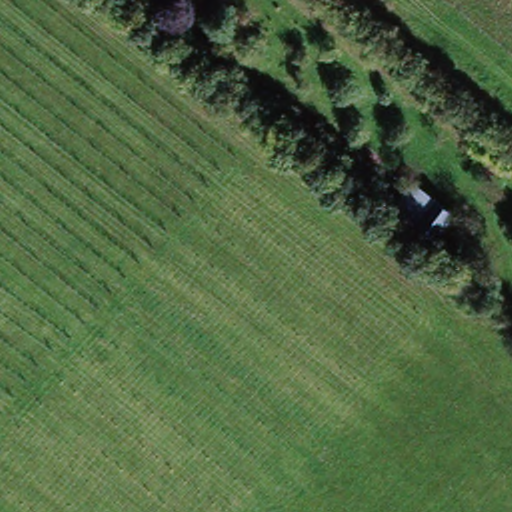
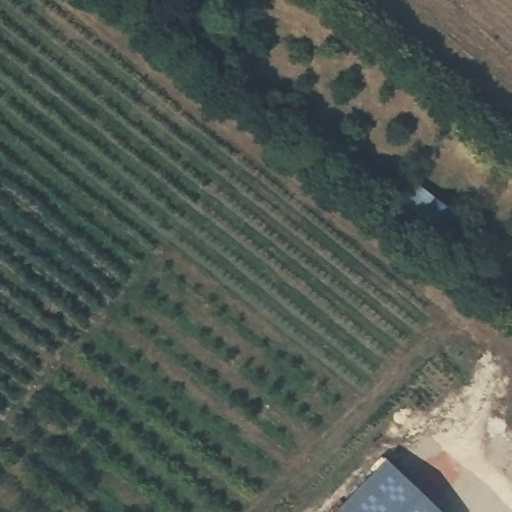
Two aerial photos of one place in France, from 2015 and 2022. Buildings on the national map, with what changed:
new [(387,461),(441,512),(338,512),(387,461)]

